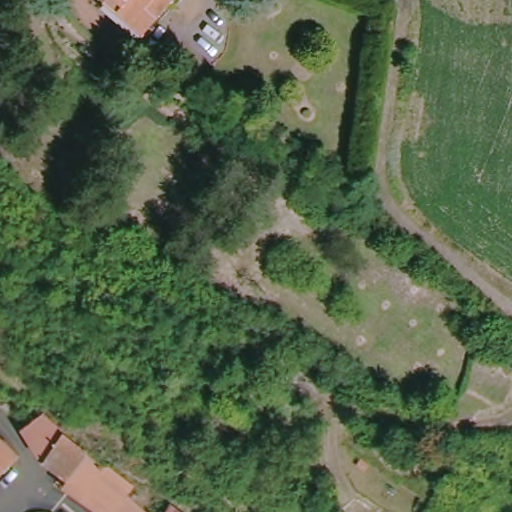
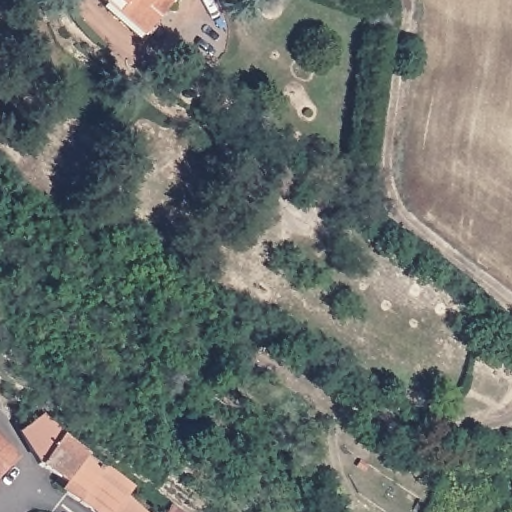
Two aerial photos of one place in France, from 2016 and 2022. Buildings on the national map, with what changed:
unchanged [(145,40),(107,5),(101,0),(178,0),(180,2),(145,40)]
unchanged [(106,470),(110,468),(135,488),(128,498),(119,512),(96,512),(94,510),(70,495),(75,485),(43,465),(25,431),(48,414),(106,470)]
unchanged [(25,460),(0,488),(0,439),(25,460)]
unchanged [(119,512),(128,498),(145,512),(119,512)]
unchanged [(168,512),(172,506),(180,512),(168,512)]

